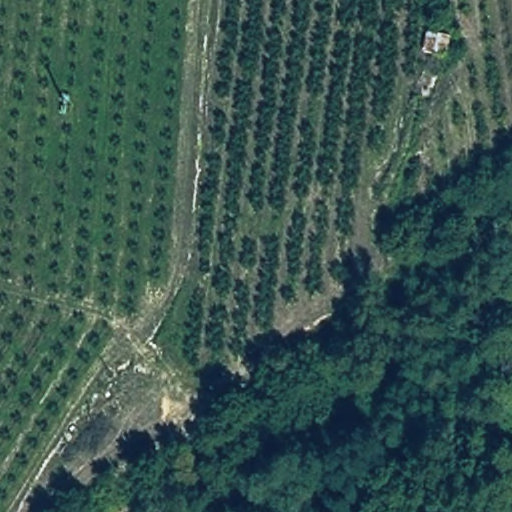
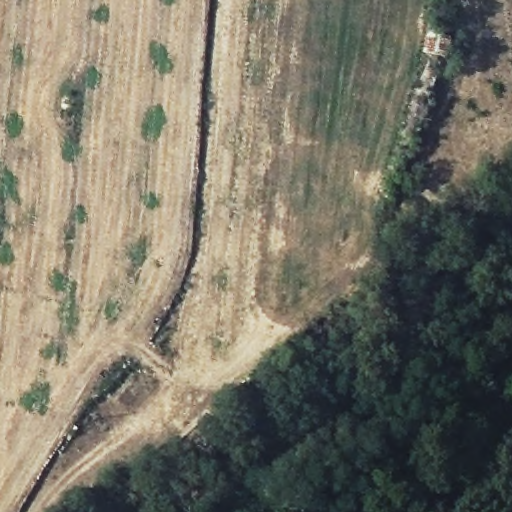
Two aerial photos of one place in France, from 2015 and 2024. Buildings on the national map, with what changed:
unchanged [(446,58),(422,54),(425,34),(449,38),(446,58)]

